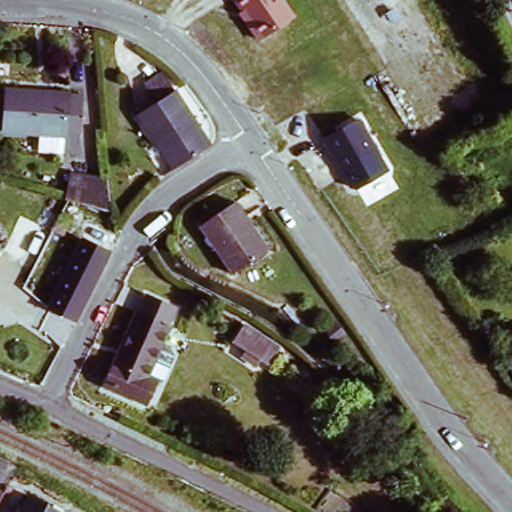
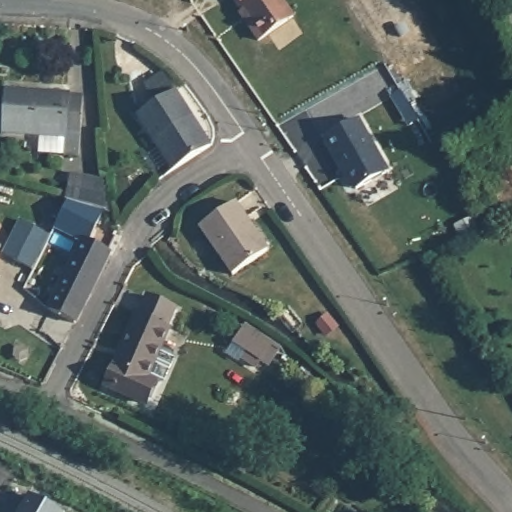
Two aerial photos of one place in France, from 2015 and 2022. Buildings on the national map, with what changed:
unchanged [(294,21),(258,45),(228,0),(280,0),(294,21)]
unchanged [(75,133),(2,127),(4,86),(77,92),(75,133)]
unchanged [(207,143),(176,170),(135,119),(168,93),(207,143)]
unchanged [(389,175),(349,195),(319,141),(360,119),(389,175)]
unchanged [(62,135),(78,136),(76,152),(60,152),(62,135)]
unchanged [(93,216),(80,212),(72,208),(70,207),(79,184),(101,192),(109,194),(108,222),(93,216)]
unchanged [(264,249),(229,273),(198,229),(232,204),(264,249)]
demolished [(0,215),(18,227),(0,256),(0,215)]
new [(51,236),(33,270),(3,254),(20,220),(51,236)]
unchanged [(49,308),(64,277),(73,257),(81,240),(105,254),(97,271),(87,290),(70,320),(49,308)]
unchanged [(0,244),(1,245),(0,247),(0,244)]
unchanged [(138,407),(99,387),(146,295),(175,310),(143,375),(153,380),(138,407)]
unchanged [(286,352),(266,378),(239,359),(243,353),(232,345),(245,326),(286,352)]
unchanged [(59,512),(17,512),(27,494),(59,512)]

